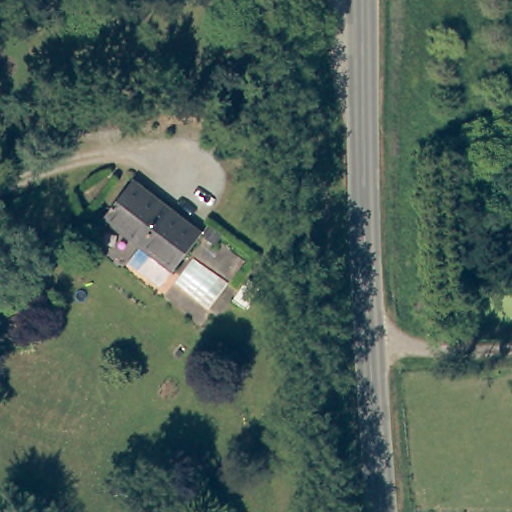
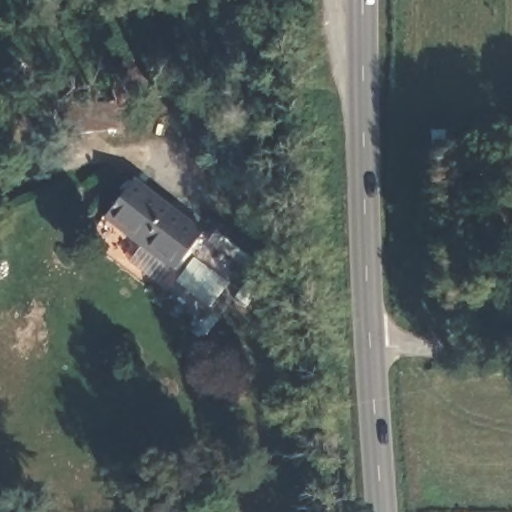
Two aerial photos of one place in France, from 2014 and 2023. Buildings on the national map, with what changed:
unchanged [(119,108),(120,126),(101,129),(66,134),(63,107),(116,99),(119,108)]
unchanged [(205,236),(163,290),(130,265),(141,249),(105,222),(136,183),(205,236)]

